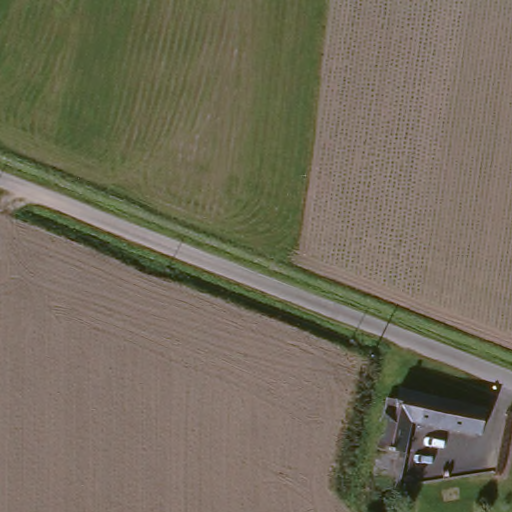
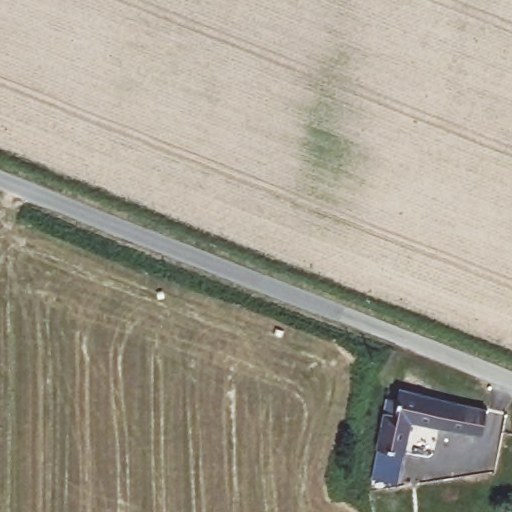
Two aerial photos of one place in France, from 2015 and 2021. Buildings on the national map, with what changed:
unchanged [(379,450),(386,412),(397,414),(402,389),(492,407),(485,432),(414,418),(406,453),(379,450)]
unchanged [(399,488),(371,488),(379,450),(406,453),(399,488)]

